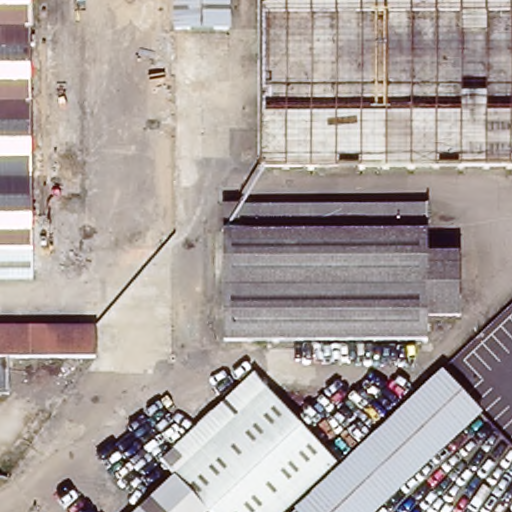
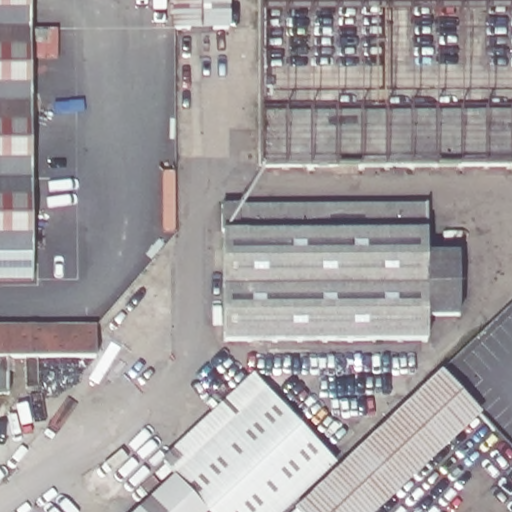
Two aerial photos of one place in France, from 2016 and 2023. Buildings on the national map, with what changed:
unchanged [(41,95),(41,110),(29,110),(28,267),(0,267),(0,0),(28,0),(28,95),(41,95)]
unchanged [(172,26),(172,0),(225,0),(225,27),(172,26)]
unchanged [(252,167),(251,0),(512,0),(512,166),(252,167)]
unchanged [(422,205),(422,254),(453,255),(453,316),(420,316),(420,341),(217,340),(219,205),(422,205)]
unchanged [(512,304),(512,377),(369,512),(297,512),(295,510),(512,304)]
unchanged [(7,360),(5,394),(0,394),(0,326),(90,328),(94,362),(7,360)]
unchanged [(251,373),(337,463),(284,512),(251,512),(180,437),(251,373)]
unchanged [(180,437),(251,512),(100,512),(180,437)]

